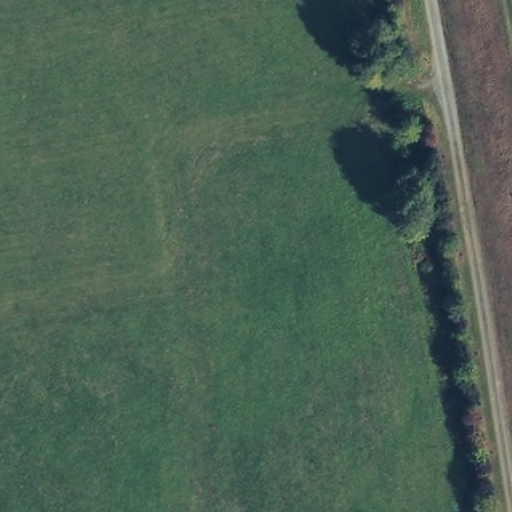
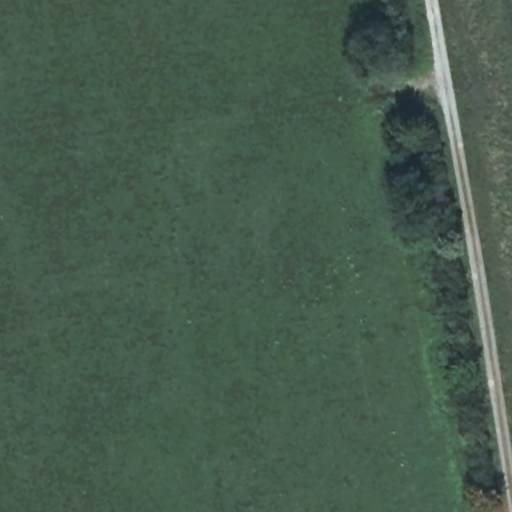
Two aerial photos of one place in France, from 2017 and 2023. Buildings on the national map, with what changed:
[]

